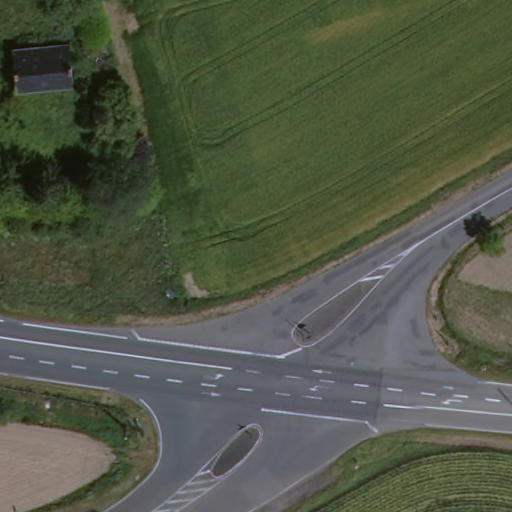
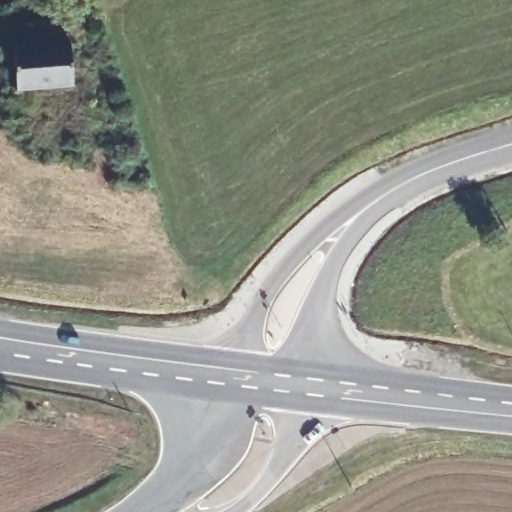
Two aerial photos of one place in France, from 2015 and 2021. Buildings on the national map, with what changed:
unchanged [(21,90),(17,45),(33,44),(71,43),(75,85),(48,87),(21,90)]

